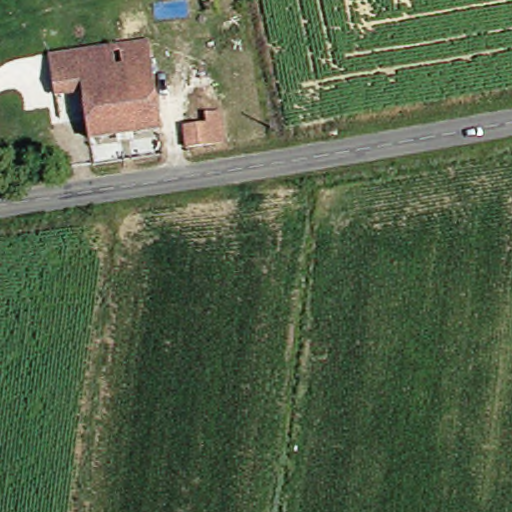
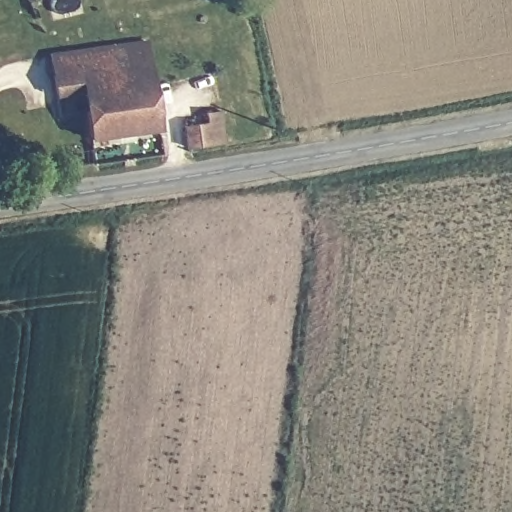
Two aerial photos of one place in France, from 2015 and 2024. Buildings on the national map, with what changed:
unchanged [(144,44),(159,127),(91,139),(83,87),(61,91),(58,74),(54,56),(144,44)]
unchanged [(192,116),(210,112),(206,72),(221,70),(229,134),(194,139),(192,116)]

